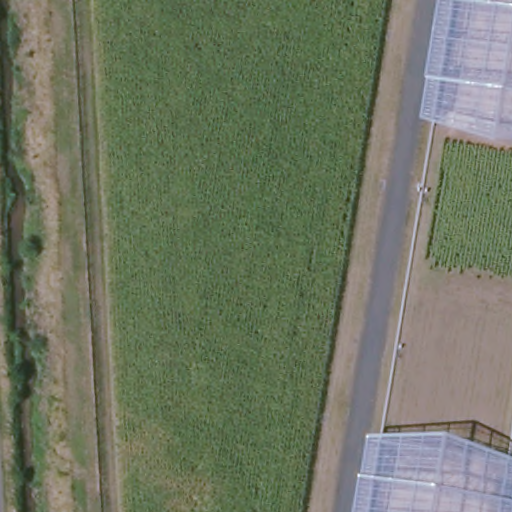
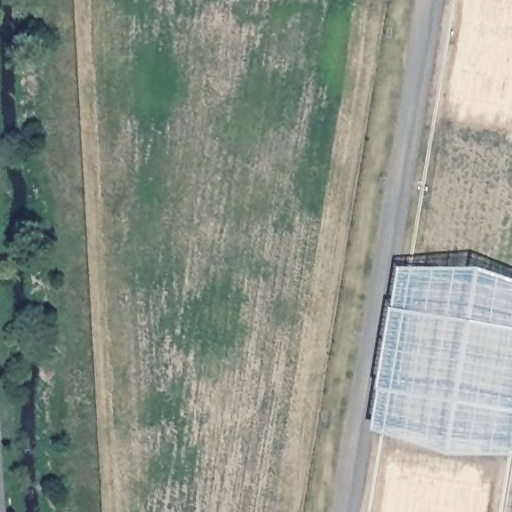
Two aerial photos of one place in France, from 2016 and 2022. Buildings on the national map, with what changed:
unchanged [(512,146),(493,146),(420,121),(441,0),(512,0),(512,146)]
new [(512,281),(512,455),(442,454),(370,429),(397,266),(474,269),(512,281)]

